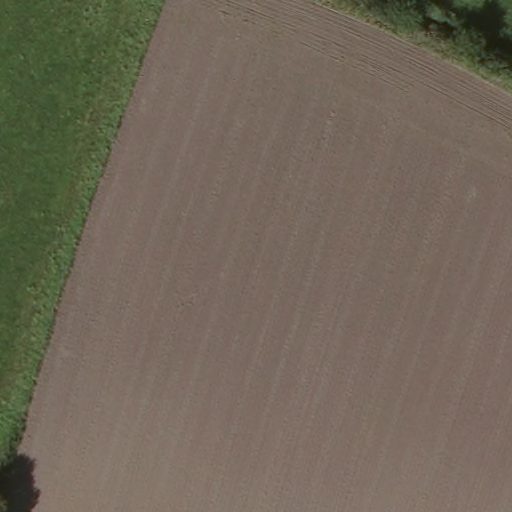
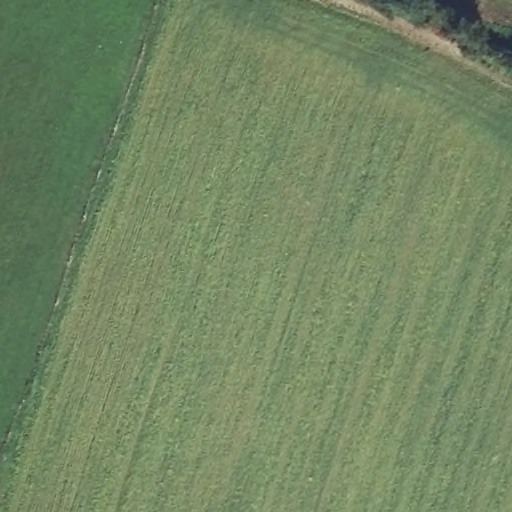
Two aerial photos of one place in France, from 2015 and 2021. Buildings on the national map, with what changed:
[]

